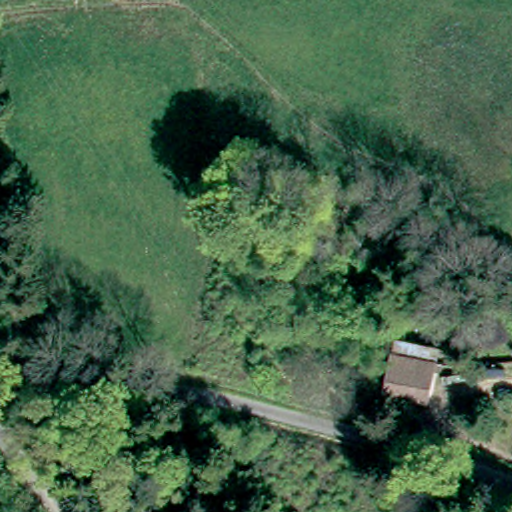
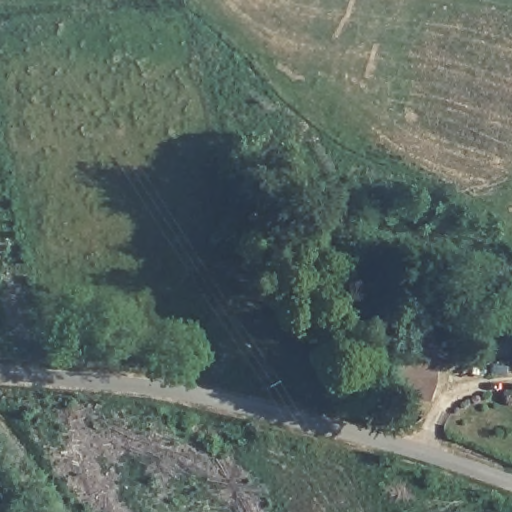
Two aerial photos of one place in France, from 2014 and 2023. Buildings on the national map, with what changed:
unchanged [(396,370),(400,352),(428,360),(423,377),(396,370)]

